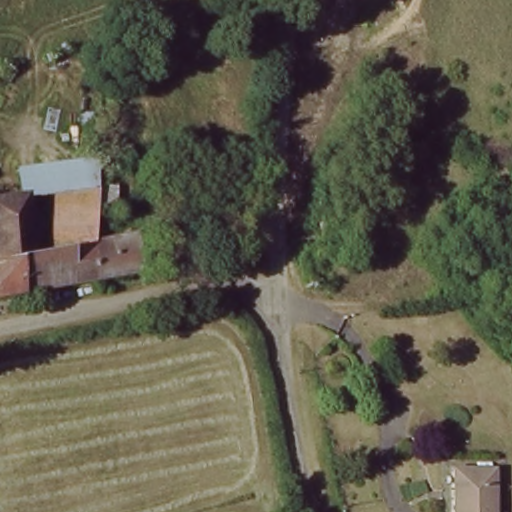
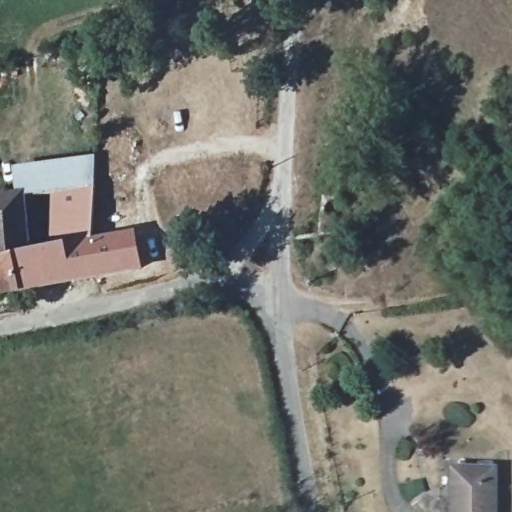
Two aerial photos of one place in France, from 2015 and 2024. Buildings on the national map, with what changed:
unchanged [(14,167),(94,159),(97,189),(16,197),(14,167)]
unchanged [(102,282),(0,298),(0,198),(16,197),(97,189),(102,188),(102,244),(102,278),(102,282)]
unchanged [(143,238),(145,271),(102,278),(102,244),(143,238)]
unchanged [(450,464),(489,461),(492,512),(452,512),(450,464)]

